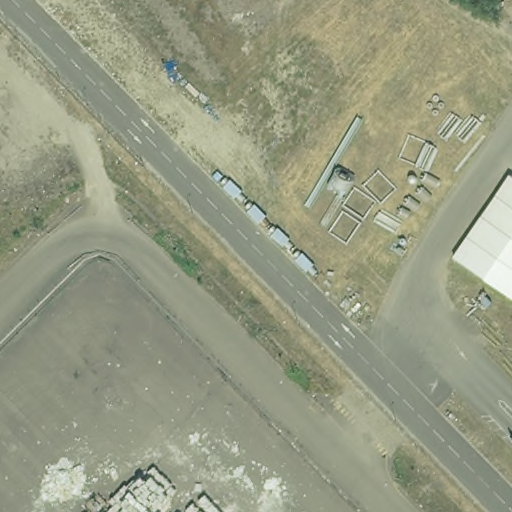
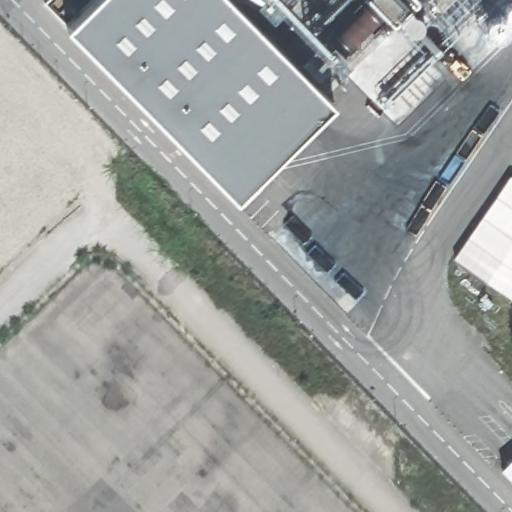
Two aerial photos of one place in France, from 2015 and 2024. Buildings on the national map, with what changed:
new [(232,0),(333,103),(255,180),(261,188),(243,206),(65,25),(91,0),(232,0)]
new [(390,16),(345,61),(313,34),(348,0),(443,0),(409,33),(390,16)]
new [(511,176),(512,177),(512,299),(454,259),(511,176)]
new [(512,458),(512,471),(506,465),(512,458)]

